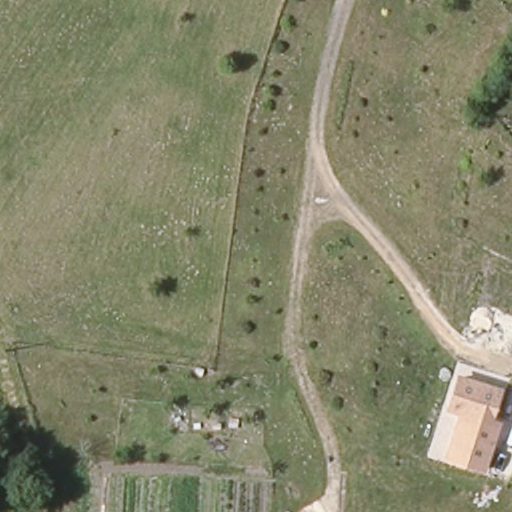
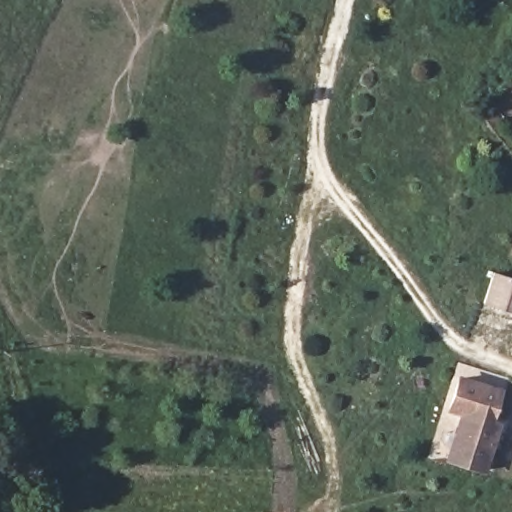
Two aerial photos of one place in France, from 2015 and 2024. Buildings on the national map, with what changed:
new [(483,304),(493,272),(512,278),(512,314),(483,304)]
unchanged [(497,421),(496,426),(457,415),(447,413),(459,375),(504,389),(497,421)]
unchanged [(503,422),(486,472),(444,459),(457,415),(496,426),(497,421),(503,422)]

